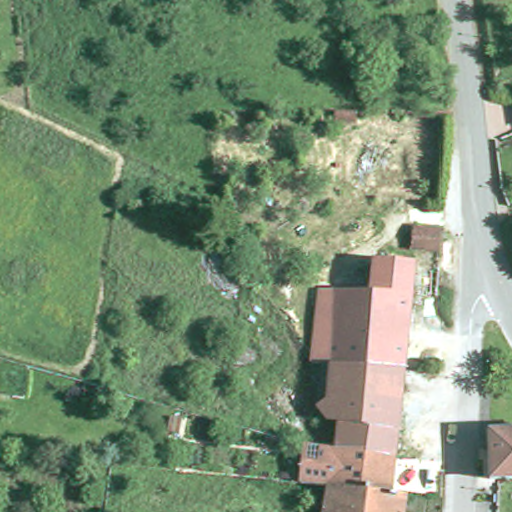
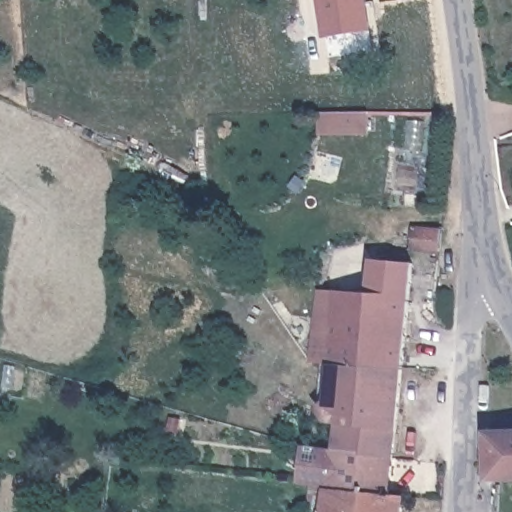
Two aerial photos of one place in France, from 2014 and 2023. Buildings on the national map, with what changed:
new [(323,37),(318,0),(369,0),(373,30),(323,37)]
new [(368,132),(319,134),(319,112),(367,111),(368,132)]
unchanged [(417,243),(417,232),(447,235),(445,256),(415,254),(416,251),(407,250),(407,242),(417,243)]
unchanged [(419,262),(411,336),(411,339),(336,334),(326,333),(320,333),(325,289),(375,292),(378,259),(419,262)]
unchanged [(320,333),(326,333),(336,334),(411,339),(408,366),(317,360),(320,333)]
unchanged [(341,437),(310,432),(317,360),(408,366),(399,456),(340,448),(341,437)]
unchanged [(512,477),(497,477),(490,477),(488,429),(512,429),(512,477)]
unchanged [(340,448),(336,487),(331,487),(305,485),(309,442),(340,448)]
unchanged [(395,493),(361,490),(336,487),(340,448),(399,456),(395,493)]
unchanged [(331,487),(336,487),(361,490),(395,493),(410,495),(407,512),(328,512),(331,487)]

